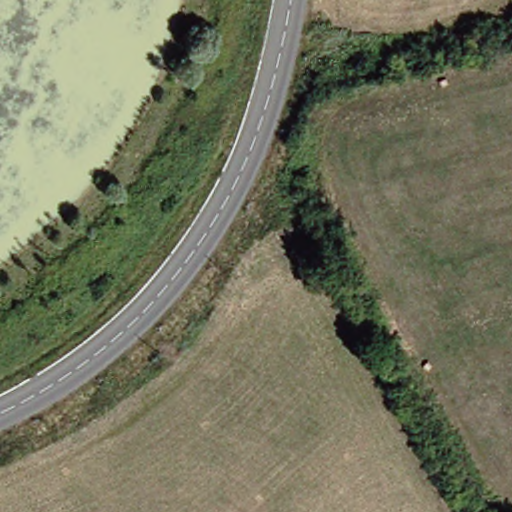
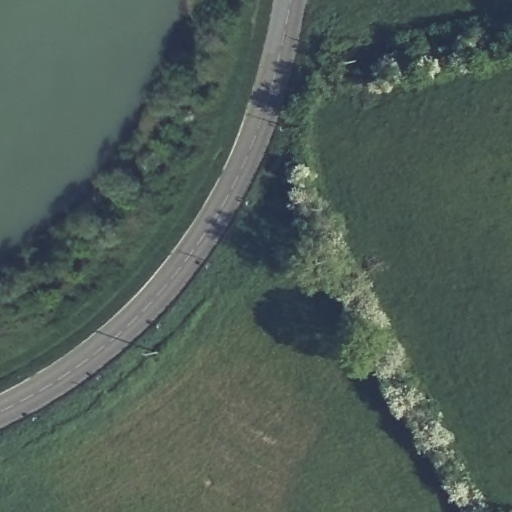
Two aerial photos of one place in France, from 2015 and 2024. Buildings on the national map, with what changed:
unchanged [(334,44),(342,85),(315,92),(306,51),(334,44)]

